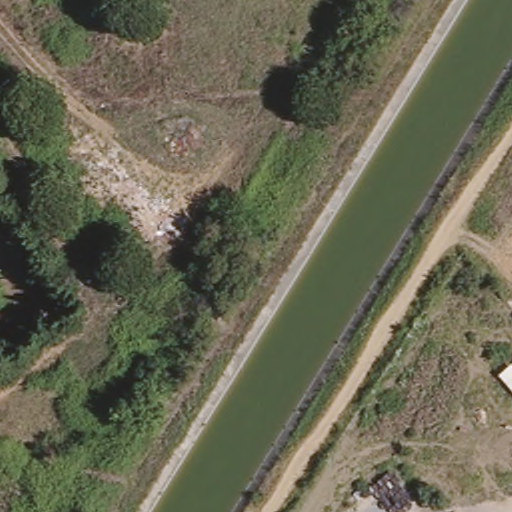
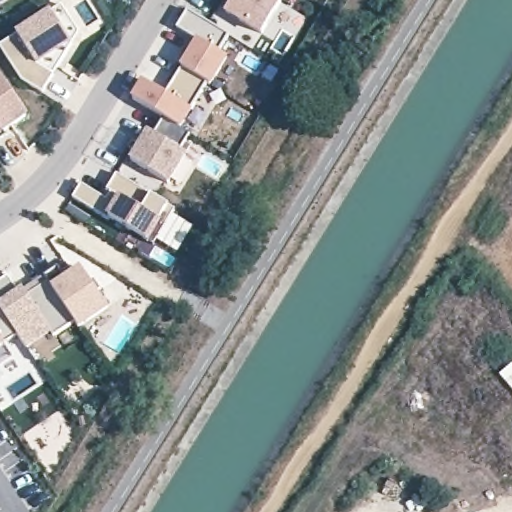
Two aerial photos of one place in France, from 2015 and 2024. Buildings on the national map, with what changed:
new [(277,10),(257,41),(221,18),(233,0),(270,0),(267,4),(277,10)]
new [(226,2),(227,0),(232,0),(229,5),(226,2)]
new [(78,35),(69,49),(38,98),(18,85),(0,57),(0,48),(48,17),(61,9),(78,35)]
new [(183,16),(225,42),(214,59),(222,64),(205,90),(177,74),(193,47),(172,34),(183,16)]
new [(163,102),(160,100),(166,91),(177,74),(205,90),(177,135),(158,123),(128,105),(139,87),(163,102)]
new [(0,135),(0,86),(22,119),(0,135)]
new [(143,136),(147,139),(158,123),(177,135),(183,139),(170,160),(177,164),(162,188),(125,165),(143,136)]
new [(0,141),(0,136),(2,139),(0,141)]
new [(143,245),(105,222),(105,224),(68,201),(77,188),(102,204),(107,196),(103,194),(112,179),(171,215),(162,230),(150,250),(143,245)]
new [(22,288),(42,275),(55,267),(64,280),(80,269),(106,309),(77,328),(74,323),(52,337),(50,332),(25,348),(0,310),(0,280),(7,275),(18,291),(22,288)]
new [(5,345),(0,349),(0,310),(16,335),(5,345)]

